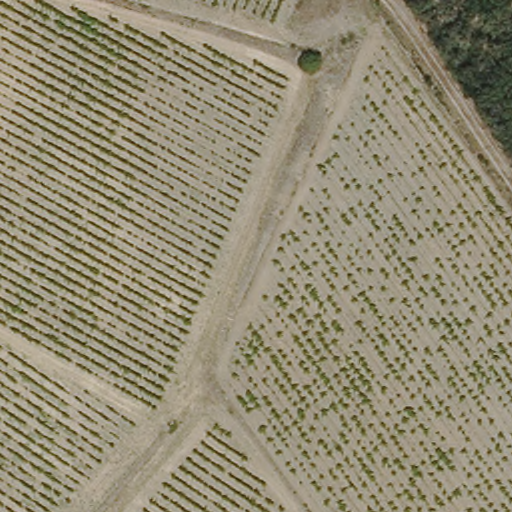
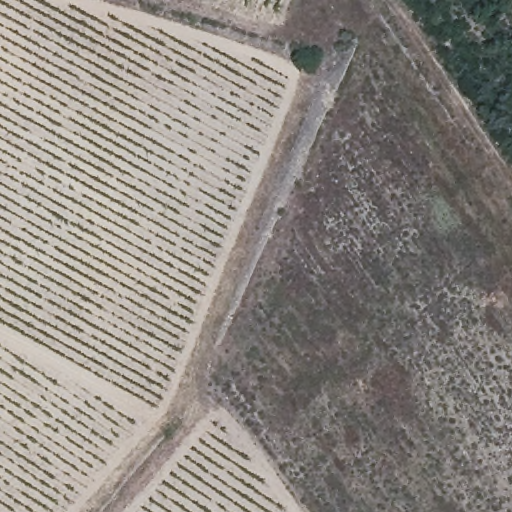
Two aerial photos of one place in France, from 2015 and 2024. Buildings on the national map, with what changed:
unchanged [(314,76),(322,59),(346,67),(340,87),(314,76)]

